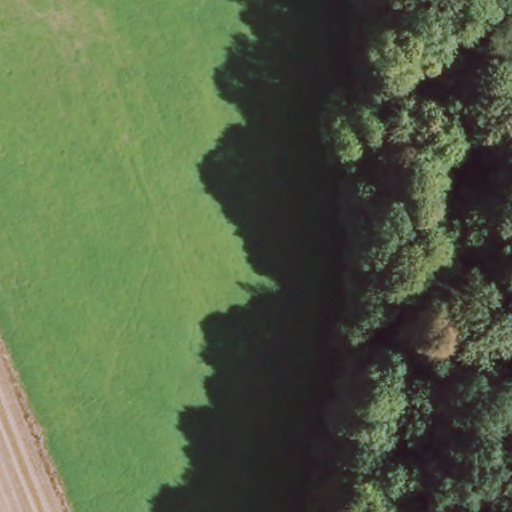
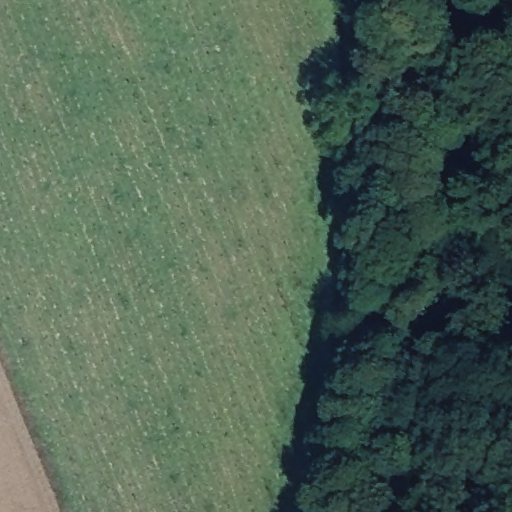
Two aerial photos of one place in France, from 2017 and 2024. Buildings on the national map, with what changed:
[]

